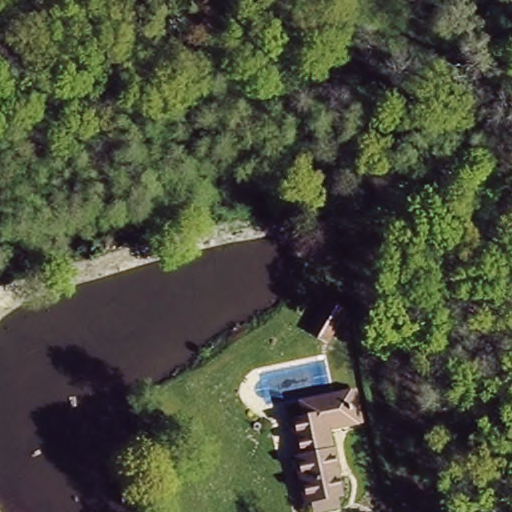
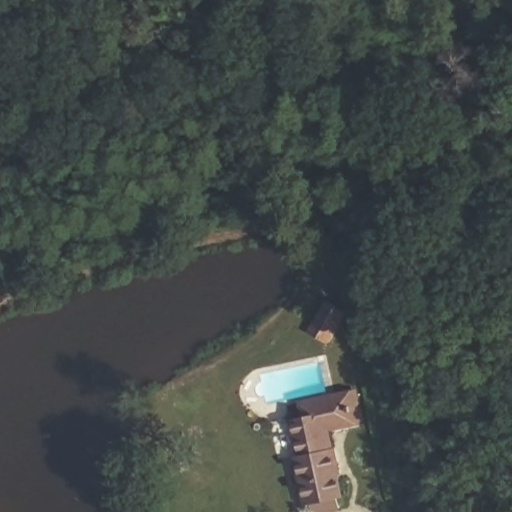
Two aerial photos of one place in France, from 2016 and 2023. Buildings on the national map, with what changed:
unchanged [(315,327),(328,294),(347,302),(333,335),(315,327)]
unchanged [(312,502),(309,503),(295,458),(300,456),(289,417),(302,412),(297,399),(352,387),(359,418),(325,426),(332,447),(336,446),(343,467),(339,469),(347,493),(339,495),(342,507),(318,512),(316,512),(312,502)]

